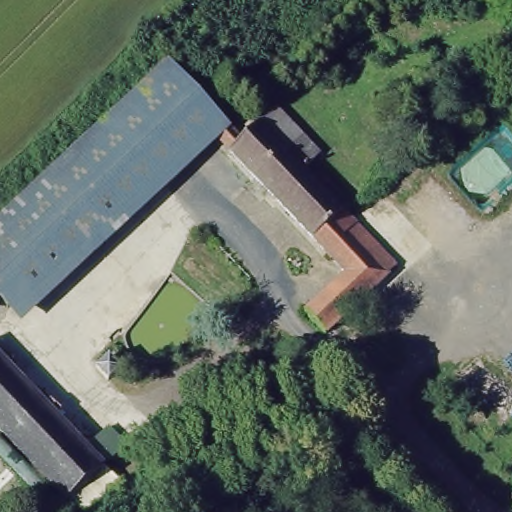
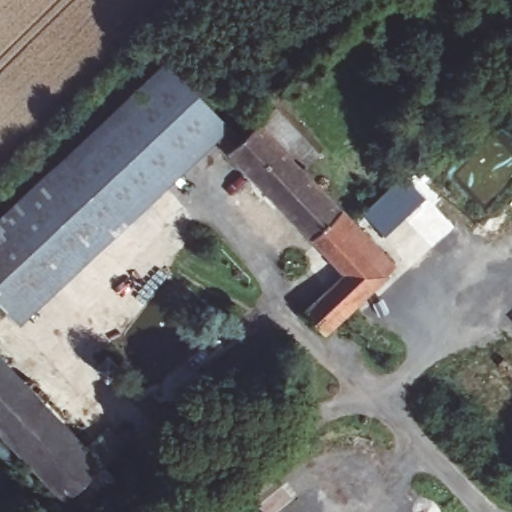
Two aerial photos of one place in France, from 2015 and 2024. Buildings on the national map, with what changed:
unchanged [(341,268),(216,141),(20,323),(0,302),(0,210),(168,54),(243,130),(273,100),(320,148),(301,165),(395,265),(326,334),(299,309),(341,268)]
unchanged [(251,66),(268,82),(253,96),(236,81),(251,66)]
new [(386,237),(365,215),(406,176),(427,198),(386,237)]
unchanged [(84,440),(105,419),(128,443),(105,461),(121,477),(86,512),(83,512),(61,490),(43,509),(33,499),(53,480),(12,436),(0,447),(0,354),(84,440)]
unchanged [(108,356),(121,370),(107,383),(93,369),(108,356)]

